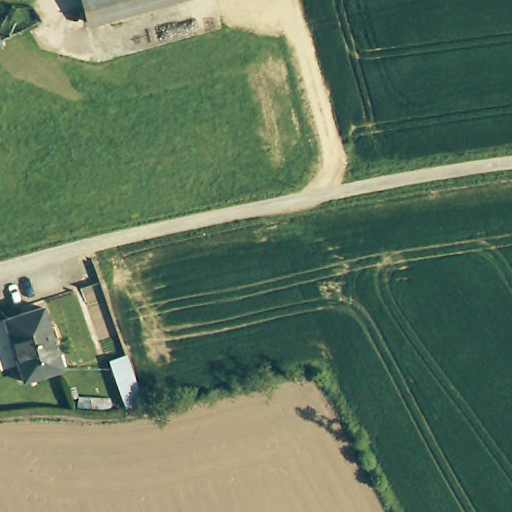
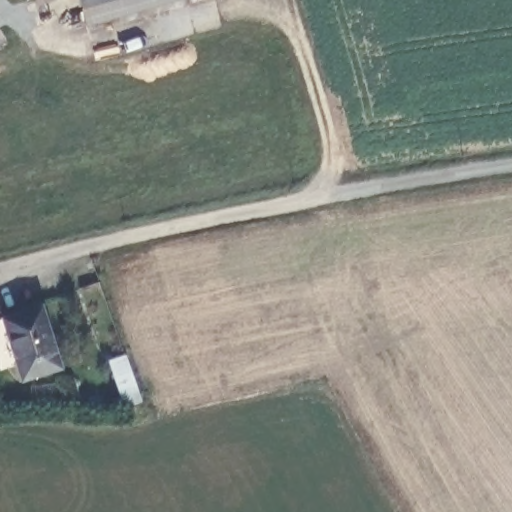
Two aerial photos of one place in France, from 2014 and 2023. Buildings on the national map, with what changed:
unchanged [(90,0),(99,0),(91,3),(90,0)]
unchanged [(185,0),(99,28),(91,3),(100,0),(185,0)]
unchanged [(2,38),(0,39),(0,32),(2,38)]
unchanged [(63,371),(25,382),(7,321),(44,309),(63,371)]
unchanged [(141,406),(123,412),(107,367),(126,362),(141,406)]

